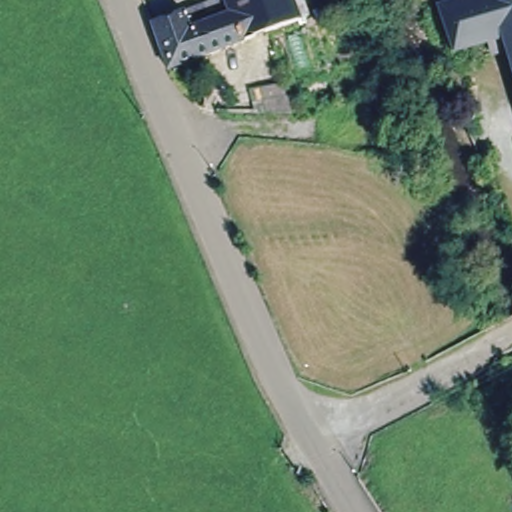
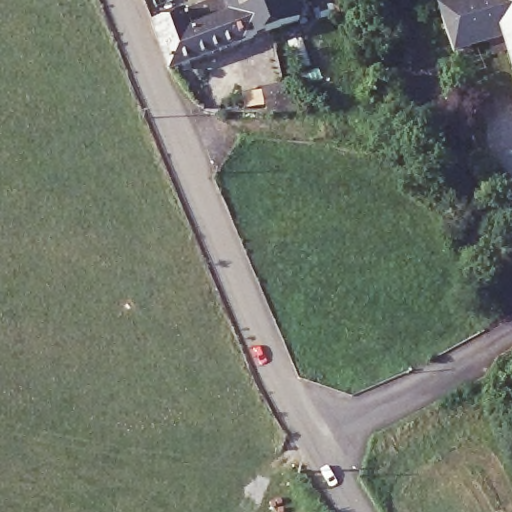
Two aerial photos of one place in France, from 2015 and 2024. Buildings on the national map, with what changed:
unchanged [(300,16),(270,28),(173,68),(154,23),(184,10),(207,0),(294,0),(300,16)]
unchanged [(436,9),(434,0),(464,0),(436,9)]
unchanged [(512,75),(511,73),(493,79),(484,50),(451,60),(436,9),(464,0),(512,0),(512,75)]
unchanged [(276,108),(267,78),(285,74),(295,109),(276,108)]

